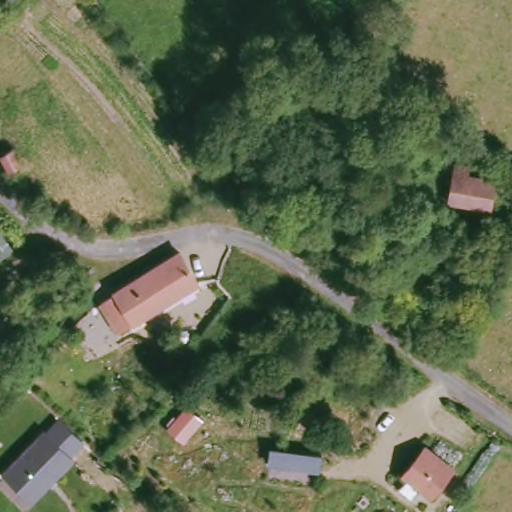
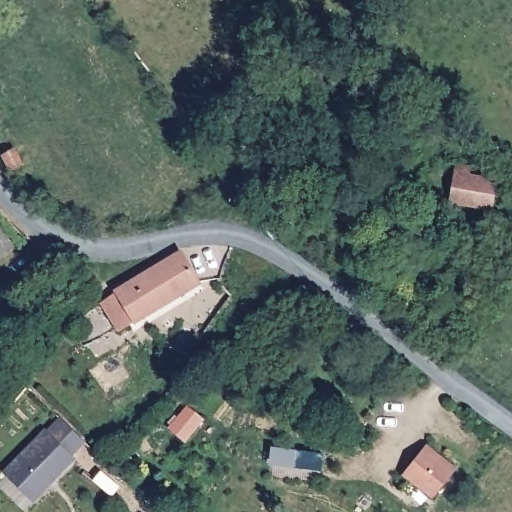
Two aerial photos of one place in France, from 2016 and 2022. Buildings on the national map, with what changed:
unchanged [(463,165),(477,169),(476,176),(498,182),(492,209),(456,197),(463,165)]
unchanged [(286,199),(311,236),(305,241),(281,234),(265,218),(274,210),(286,199)]
unchanged [(0,207),(10,213),(1,227),(0,226),(0,207)]
unchanged [(198,286),(122,328),(105,302),(123,282),(180,250),(198,286)]
unchanged [(48,431),(50,433),(55,428),(64,420),(85,441),(75,451),(71,455),(75,459),(33,500),(6,472),(48,431)]
unchanged [(424,446),(450,460),(458,464),(447,484),(442,495),(408,476),(424,446)]
unchanged [(272,462),(275,447),(325,454),(322,469),(272,462)]

